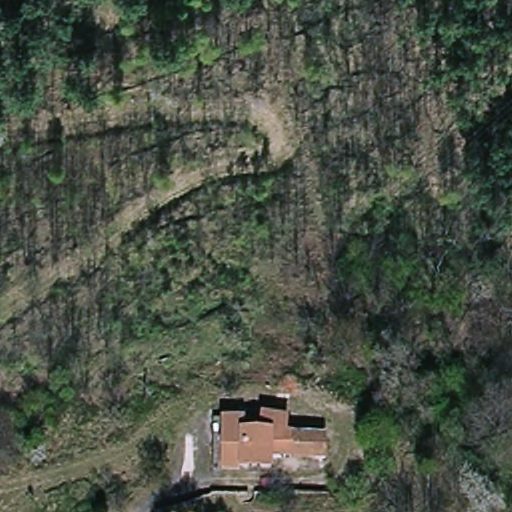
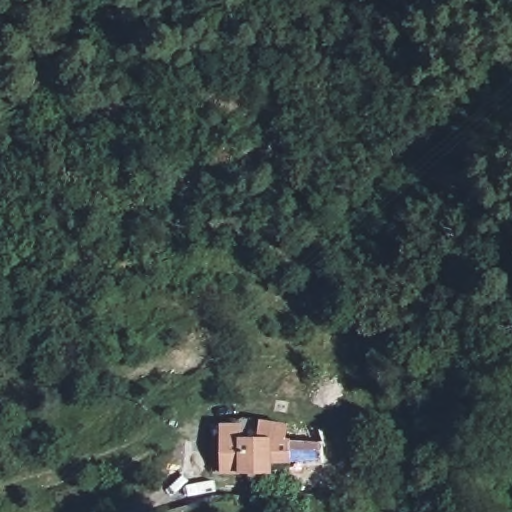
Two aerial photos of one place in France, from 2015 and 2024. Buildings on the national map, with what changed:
unchanged [(220,472),(224,430),(240,432),(242,442),(262,443),(263,424),(285,426),(285,436),(319,437),(319,463),(273,462),(272,475),(220,472)]

